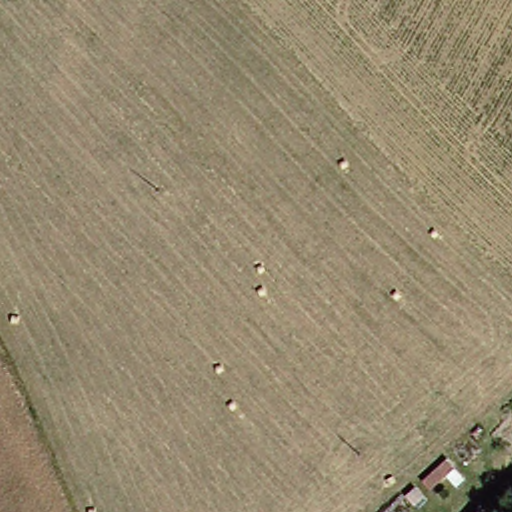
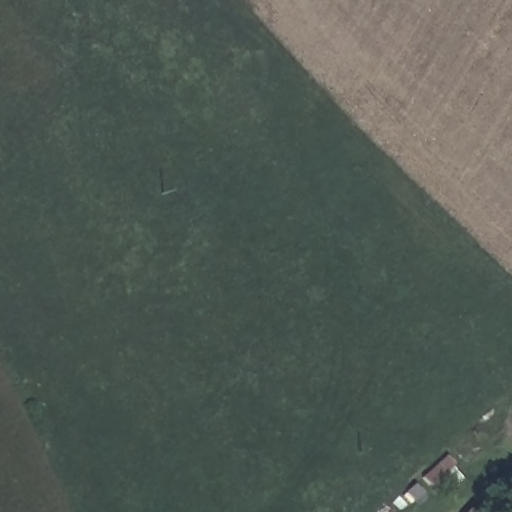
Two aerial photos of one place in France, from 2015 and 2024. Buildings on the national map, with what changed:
unchanged [(490,512),(484,512),(487,509),(490,512)]

